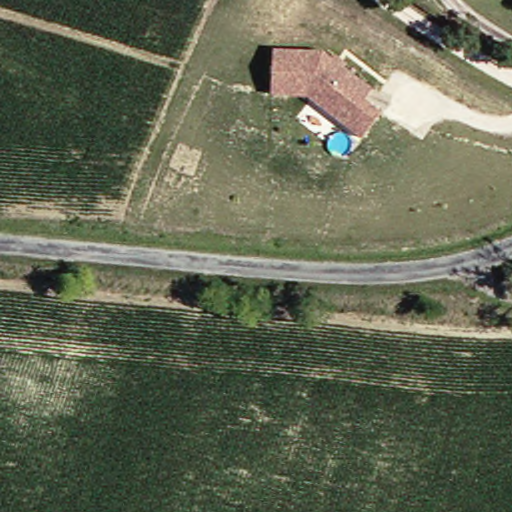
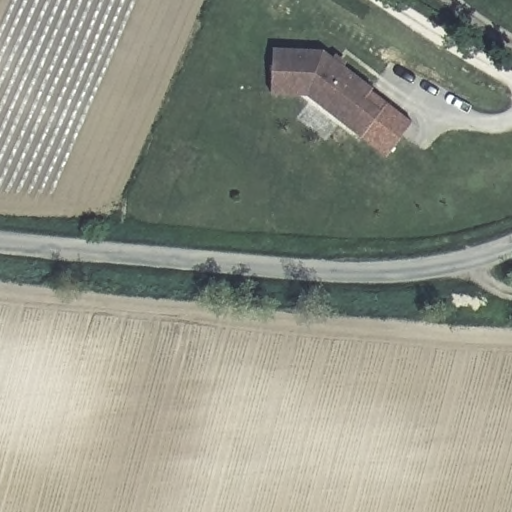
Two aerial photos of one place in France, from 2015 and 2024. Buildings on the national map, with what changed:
unchanged [(323,51),(372,88),(365,99),(381,112),(362,137),(307,95),(271,94),(273,49),(323,51)]
new [(413,122),(387,156),(362,137),(381,112),(365,99),(372,88),(413,122)]

